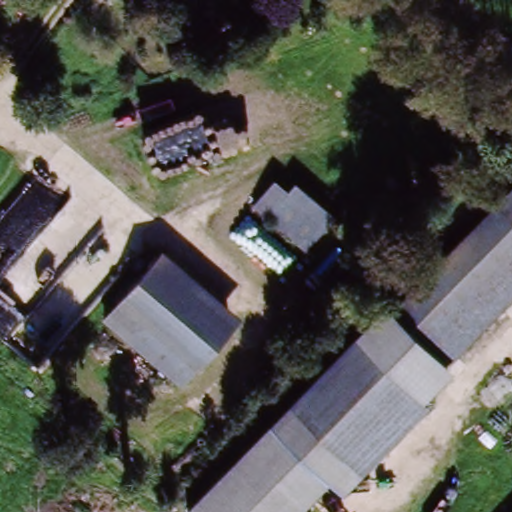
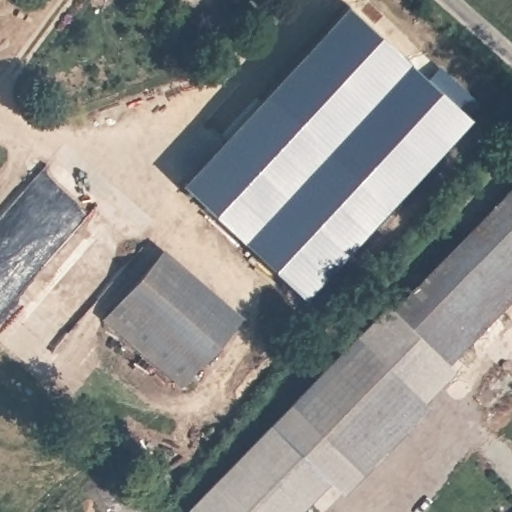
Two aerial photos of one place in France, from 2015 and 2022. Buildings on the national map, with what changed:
new [(471,117),(298,310),(170,185),(347,3),(471,117)]
demolished [(274,181),(289,193),(295,184),(335,215),(309,252),(253,209),(274,181)]
unchanged [(512,183),(512,222),(408,325),(390,306),(512,183)]
unchanged [(408,325),(512,222),(512,299),(447,365),(408,325)]
unchanged [(178,387),(98,318),(167,246),(243,313),(178,387)]
unchanged [(417,395),(357,338),(390,306),(408,325),(447,365),(417,395)]
unchanged [(417,395),(425,402),(363,463),(292,395),(352,333),(357,338),(417,395)]
unchanged [(362,473),(341,496),(327,485),(301,512),(185,512),(182,508),(288,395),(362,473)]

